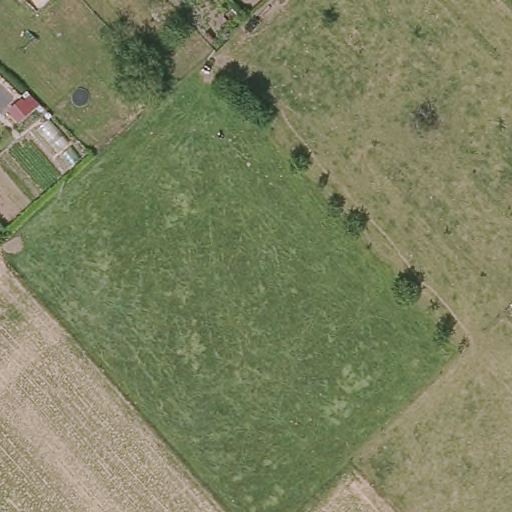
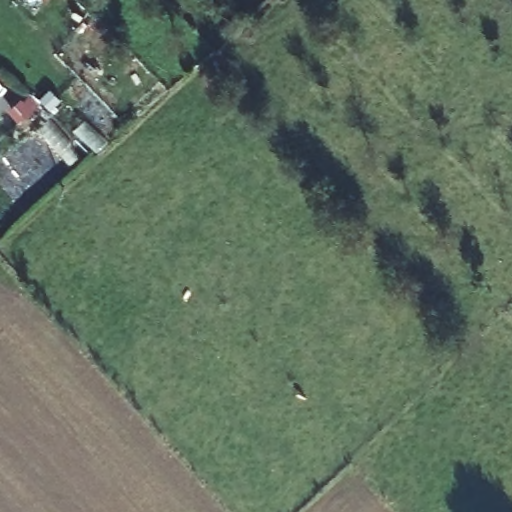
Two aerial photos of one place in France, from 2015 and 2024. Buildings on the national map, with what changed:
[]

